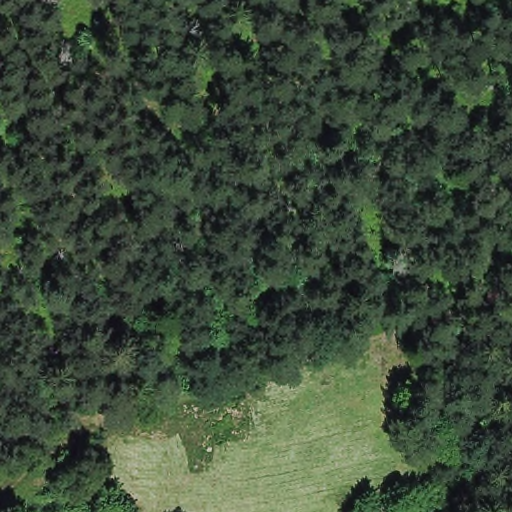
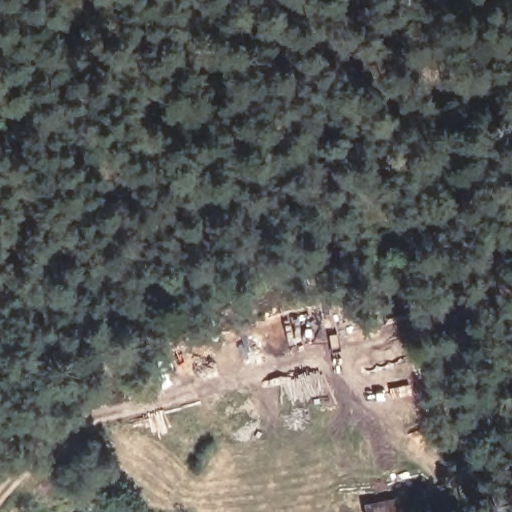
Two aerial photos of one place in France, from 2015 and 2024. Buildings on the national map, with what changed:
unchanged [(362,510),(392,504),(393,512),(362,512),(362,510)]

